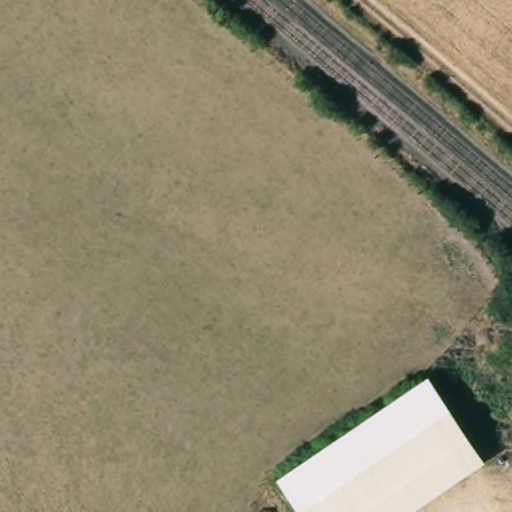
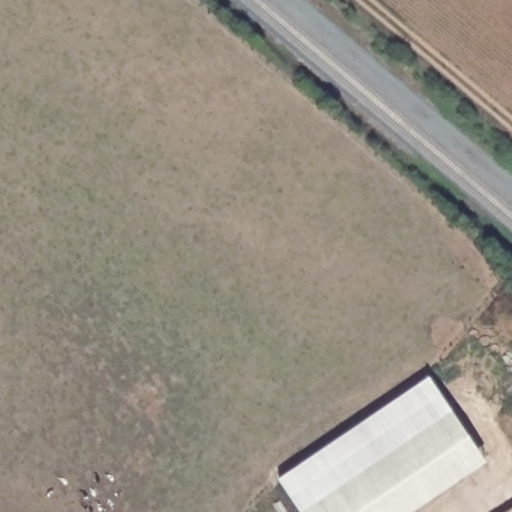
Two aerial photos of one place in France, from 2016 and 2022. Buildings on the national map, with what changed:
unchanged [(433,375),(488,458),(407,512),(307,512),(282,475),(433,375)]

